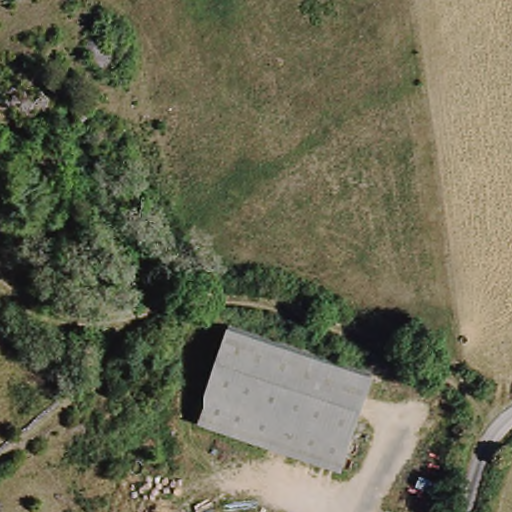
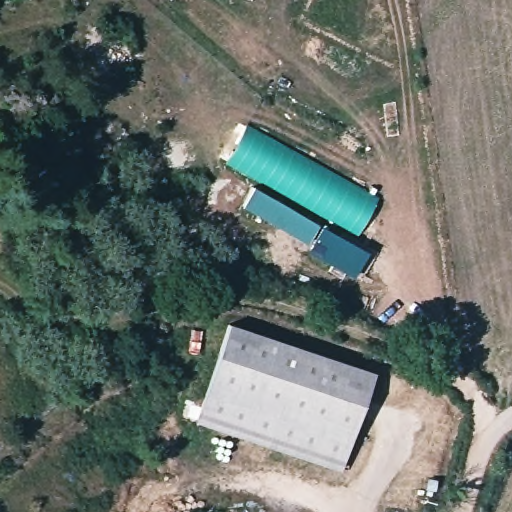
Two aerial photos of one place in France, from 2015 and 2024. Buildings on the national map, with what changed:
new [(378,197),(358,235),(224,162),(246,125),(378,197)]
new [(318,225),(307,244),(241,206),(253,187),(318,225)]
new [(368,252),(354,277),(308,251),(321,227),(368,252)]
unchanged [(345,468),(203,427),(229,344),(370,388),(345,468)]

